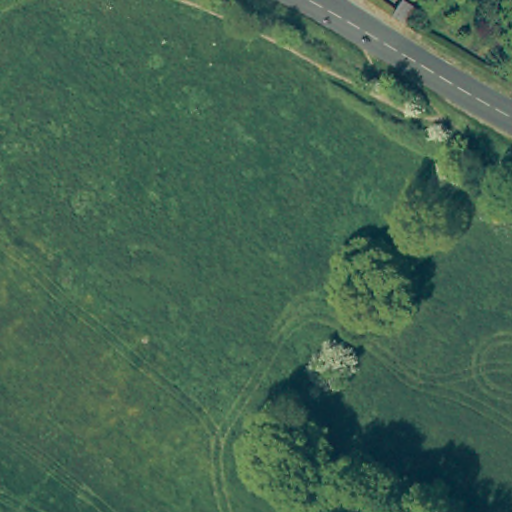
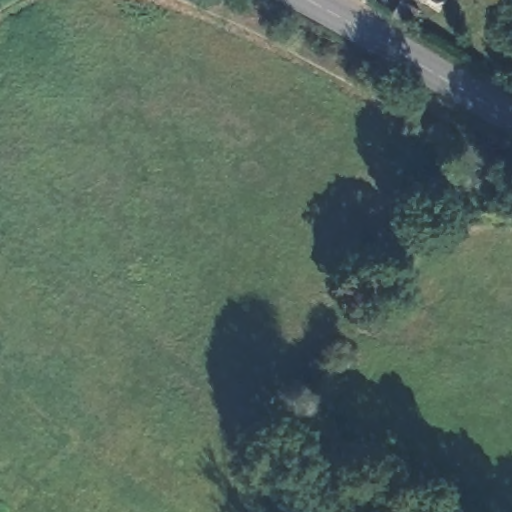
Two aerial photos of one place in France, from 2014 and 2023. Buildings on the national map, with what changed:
unchanged [(407,0),(411,0),(421,8),(410,24),(396,14),(407,0)]

